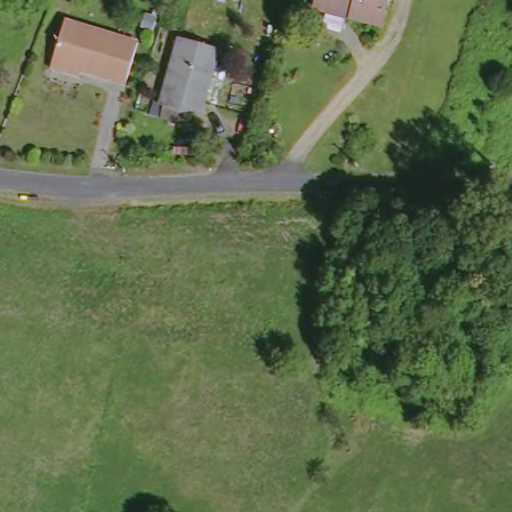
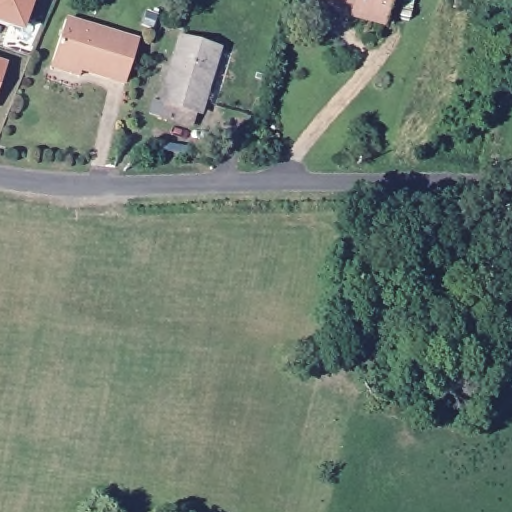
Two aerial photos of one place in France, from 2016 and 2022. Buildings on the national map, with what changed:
new [(23,34),(0,26),(0,0),(34,0),(23,34)]
unchanged [(390,30),(317,9),(319,0),(398,0),(390,30)]
unchanged [(156,20),(153,32),(142,29),(145,17),(156,20)]
unchanged [(138,44),(127,85),(55,65),(66,24),(138,44)]
unchanged [(225,50),(208,112),(206,111),(202,123),(173,116),(177,103),(175,102),(192,42),(225,50)]
new [(0,61),(7,63),(0,85),(0,61)]

